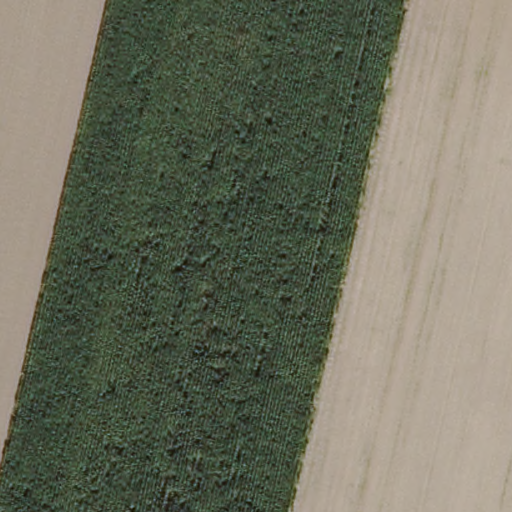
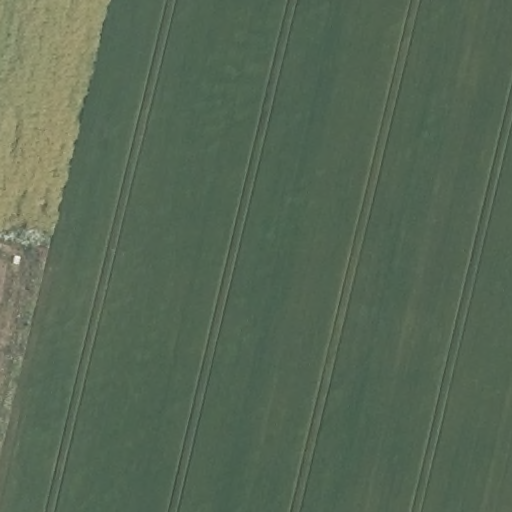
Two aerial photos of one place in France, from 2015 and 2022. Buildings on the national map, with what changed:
[]

